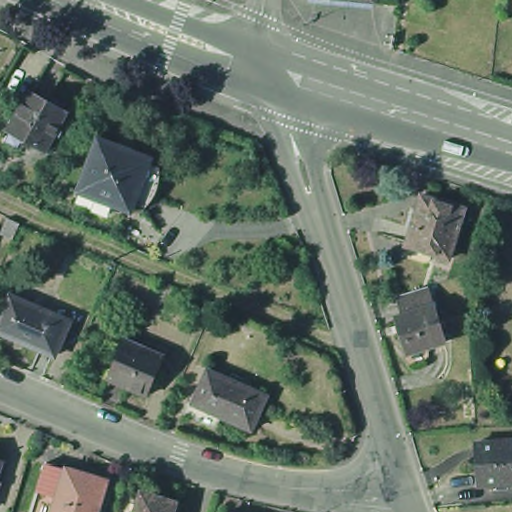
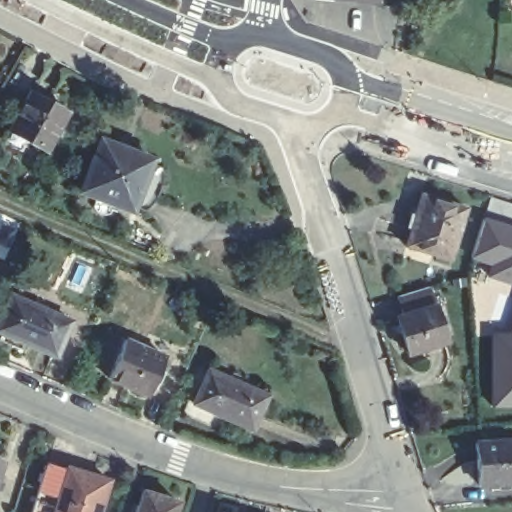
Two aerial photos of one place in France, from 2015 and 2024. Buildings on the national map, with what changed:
unchanged [(16,129),(15,127),(37,87),(74,108),(51,147),(31,137),(25,146),(11,138),(16,129)]
unchanged [(71,182),(92,131),(142,151),(141,154),(151,158),(150,173),(145,189),(135,201),(124,196),(121,202),(106,196),(102,205),(97,207),(88,204),(85,197),(89,189),(71,182)]
unchanged [(413,212),(415,211),(418,202),(423,204),(428,189),(470,203),(454,252),(412,240),(418,221),(410,219),(413,212)]
unchanged [(5,219),(16,224),(7,241),(0,237),(0,228),(5,219)]
new [(512,228),(512,286),(487,278),(491,267),(471,261),(485,219),(512,228)]
unchanged [(13,287),(72,312),(57,345),(0,322),(0,317),(13,287)]
unchanged [(402,318),(397,299),(420,292),(430,289),(445,345),(407,356),(397,321),(402,318)]
new [(491,333),(511,334),(512,333),(512,410),(491,411),(491,333)]
unchanged [(127,340),(167,356),(160,373),(166,376),(160,391),(153,388),(150,396),(110,378),(127,340)]
unchanged [(191,391),(197,392),(210,363),(231,372),(234,366),(245,371),(243,377),(269,387),(255,423),(225,411),(220,423),(185,407),(191,391)]
unchanged [(512,475),(480,478),(477,436),(512,433),(512,475)]
unchanged [(5,456),(0,474),(0,454),(5,456)]
unchanged [(70,467),(72,465),(111,477),(100,512),(33,512),(50,460),(70,467)]
unchanged [(177,505),(175,512),(137,512),(142,494),(177,505)]

